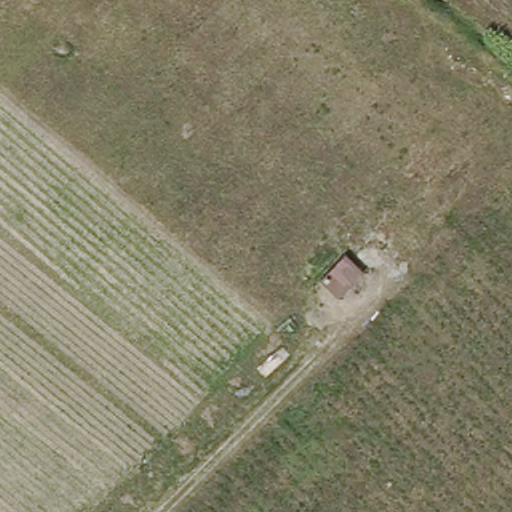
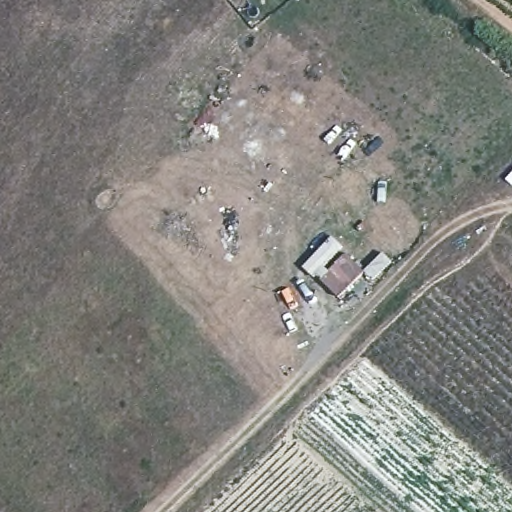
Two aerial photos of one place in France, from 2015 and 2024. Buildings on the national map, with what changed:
unchanged [(339,303),(320,284),(346,258),(365,277),(339,303)]

